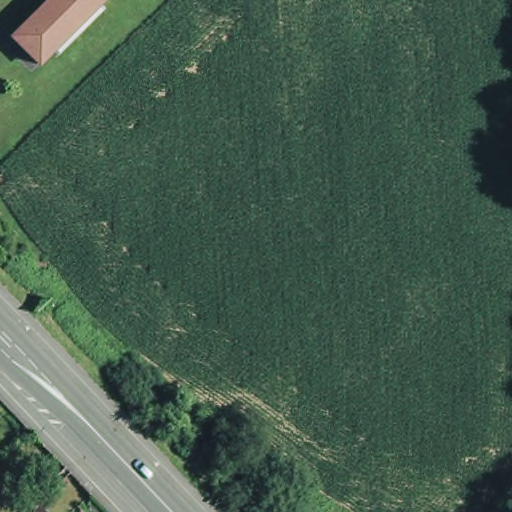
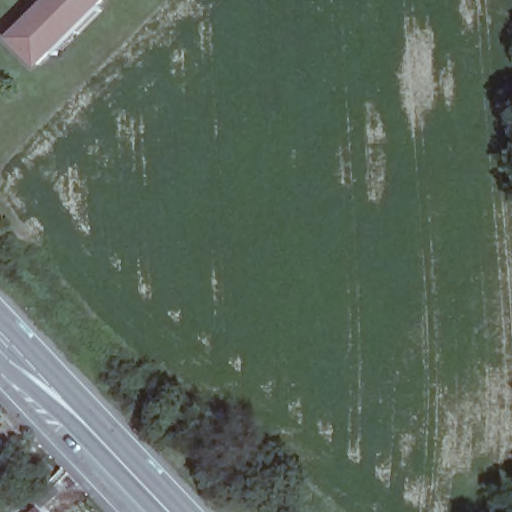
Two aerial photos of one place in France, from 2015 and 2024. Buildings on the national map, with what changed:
unchanged [(15,39),(10,34),(43,0),(54,0),(15,39)]
unchanged [(55,51),(50,45),(35,59),(15,39),(54,0),(95,0),(94,1),(100,6),(55,51)]
unchanged [(41,512),(38,512),(40,511),(41,512)]

